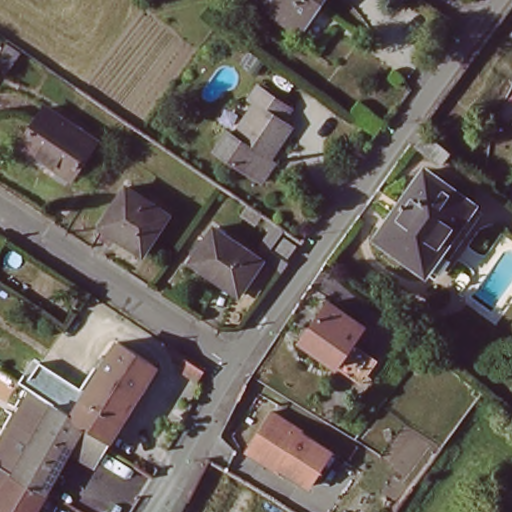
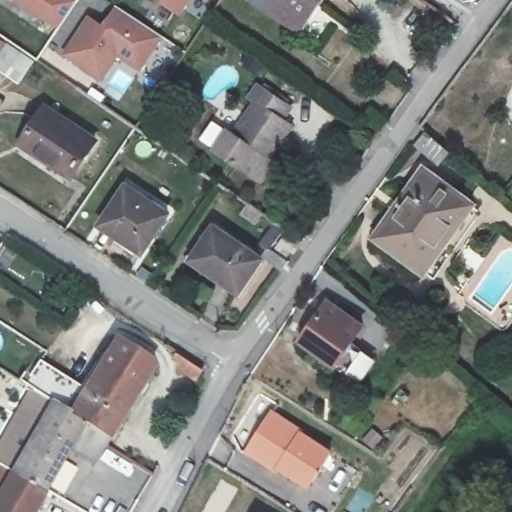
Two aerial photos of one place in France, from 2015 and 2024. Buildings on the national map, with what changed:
new [(74,4),(58,27),(17,0),(69,0),(74,4)]
new [(180,15),(158,0),(189,0),(180,15)]
new [(266,9),(262,16),(245,2),(246,0),(272,0),(266,9)]
unchanged [(272,0),(320,0),(299,31),(266,9),(272,0)]
new [(90,20),(108,32),(111,26),(108,24),(118,8),(160,37),(139,70),(117,55),(100,79),(65,55),(90,20)]
unchanged [(5,42),(6,42),(21,53),(7,75),(0,71),(0,49),(5,42)]
unchanged [(266,182),(258,177),(216,149),(230,129),(236,132),(257,102),(251,97),(260,85),(298,110),(289,123),(297,129),(276,160),(280,162),(266,182)]
unchanged [(512,89),(512,104),(507,91),(512,89)]
unchanged [(34,156),(18,145),(43,106),(93,137),(71,171),(68,177),(34,156)]
unchanged [(448,154),(438,167),(416,152),(427,138),(448,154)]
unchanged [(421,170),(473,207),(425,278),(371,242),(421,170)]
unchanged [(127,191),(169,217),(143,257),(101,231),(127,191)]
unchanged [(188,260),(210,225),(258,255),(236,288),(188,260)]
unchanged [(274,244),(283,232),(294,240),(285,252),(274,244)]
unchanged [(330,302),(366,327),(338,367),(301,342),(330,302)]
unchanged [(54,400),(28,384),(43,360),(88,387),(91,382),(90,371),(104,350),(110,352),(119,337),(159,361),(112,436),(54,400)]
unchanged [(216,375),(210,385),(181,367),(187,357),(216,375)]
unchanged [(16,467),(54,400),(112,436),(106,445),(123,457),(116,466),(99,456),(94,464),(71,452),(50,487),(16,467)]
unchanged [(301,434),(300,437),(330,456),(309,488),(279,469),(280,467),(250,447),(271,415),(301,434)]
unchanged [(35,512),(0,512),(0,494),(16,467),(50,487),(35,512)]

